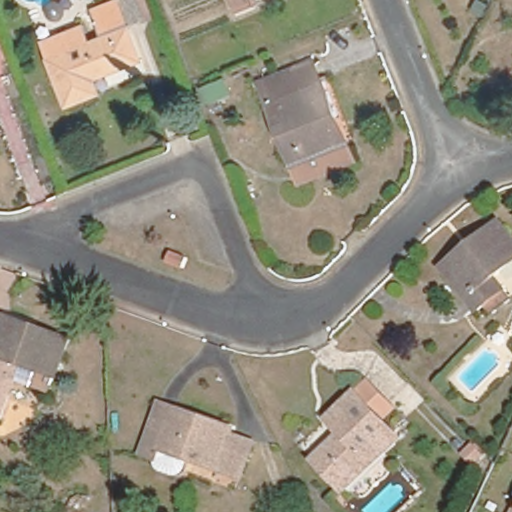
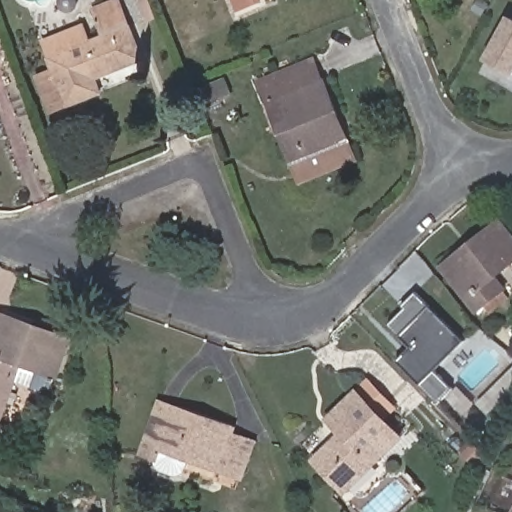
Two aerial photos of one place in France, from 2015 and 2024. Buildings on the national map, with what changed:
unchanged [(89,70),(100,98),(87,104),(69,112),(39,36),(76,21),(76,22),(82,36),(83,37),(98,30),(87,0),(115,0),(136,49),(89,70)]
unchanged [(236,8),(232,0),(256,0),(236,8)]
new [(506,15),(512,19),(512,75),(483,59),(506,15)]
unchanged [(314,50),(352,140),(293,164),(257,84),(314,50)]
unchanged [(362,160),(299,186),(293,164),(352,140),(362,160)]
unchanged [(512,247),(489,267),(498,278),(499,278),(481,293),(470,302),(441,267),(438,263),(465,243),(460,237),(493,209),(512,230),(512,247)]
unchanged [(179,249),(175,258),(159,251),(163,242),(179,249)]
new [(434,370),(452,389),(437,403),(397,361),(411,347),(390,325),(406,308),(402,305),(415,292),(463,340),(434,370)]
unchanged [(11,368),(0,394),(0,304),(37,318),(69,331),(54,367),(47,383),(11,368)]
unchanged [(346,488),(337,481),(313,459),(333,436),(337,432),(323,420),(346,393),(348,391),(360,379),(382,399),(372,412),(387,426),(363,455),(370,461),(347,487),(346,488)]
unchanged [(202,419),(176,408),(158,456),(140,449),(160,397),(204,414),(202,419)]
unchanged [(176,408),(202,419),(204,414),(233,425),(231,428),(256,438),(242,474),(191,454),(187,467),(158,456),(176,408)]

